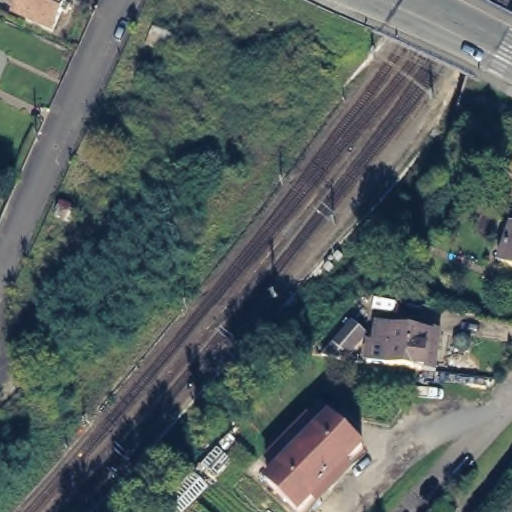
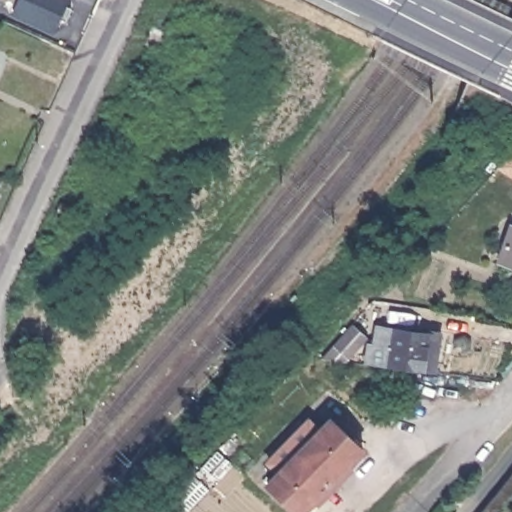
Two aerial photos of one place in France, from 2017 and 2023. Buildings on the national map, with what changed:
unchanged [(64,10),(55,30),(15,11),(20,0),(68,0),(67,3),(72,6),(68,13),(64,10)]
unchanged [(500,169),(512,155),(512,178),(500,169)]
unchanged [(500,264),(512,229),(512,268),(500,264)]
unchanged [(352,320),(368,334),(346,357),(322,355),(352,320)]
unchanged [(388,361),(369,359),(372,341),(377,342),(379,323),(395,325),(429,330),(430,325),(442,327),(437,368),(388,361)]
unchanged [(267,484),(279,472),(268,462),(308,421),(318,431),(330,419),(362,450),(301,512),(296,512),(267,484)]

